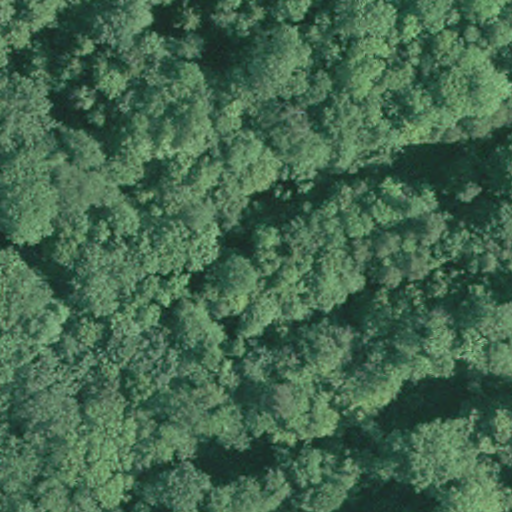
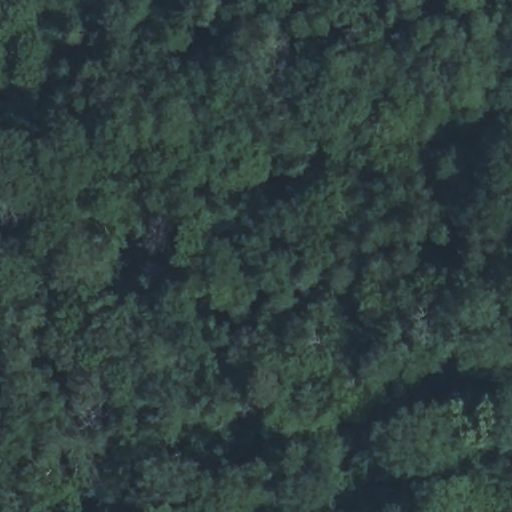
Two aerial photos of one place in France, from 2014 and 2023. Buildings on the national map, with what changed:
[]

